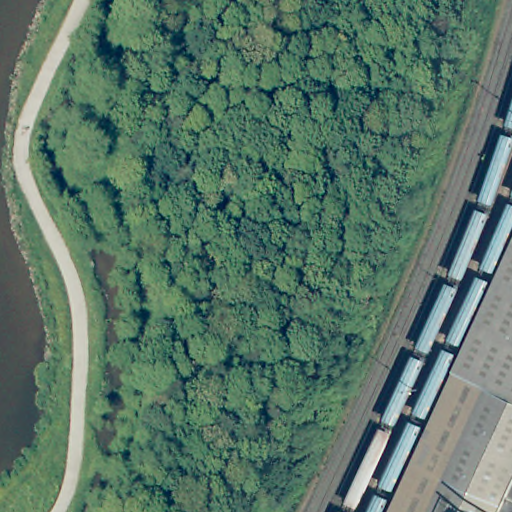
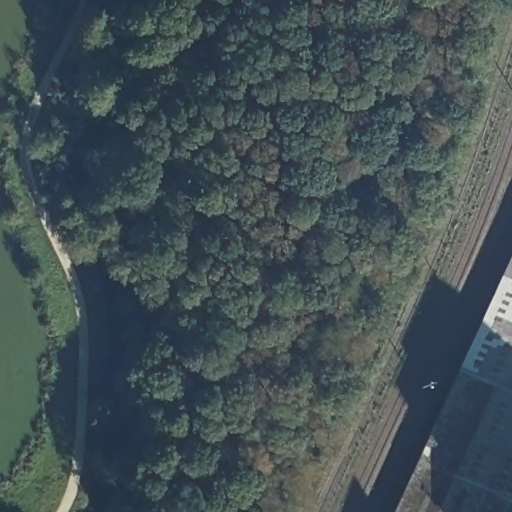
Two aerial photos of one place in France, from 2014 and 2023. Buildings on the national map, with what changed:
unchanged [(512,512),(393,512),(512,253),(512,512)]

